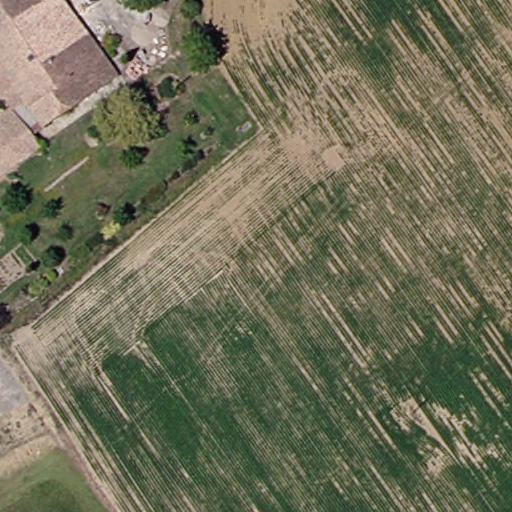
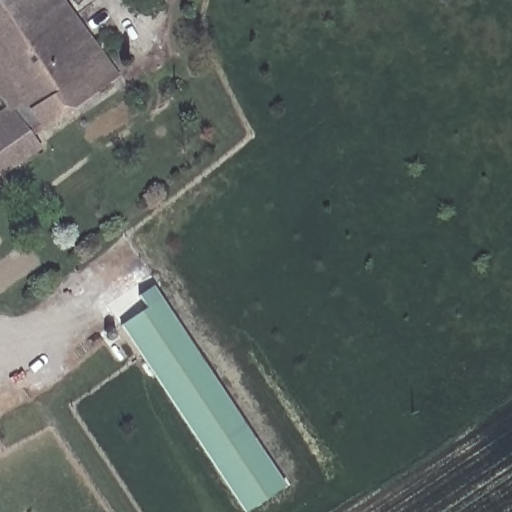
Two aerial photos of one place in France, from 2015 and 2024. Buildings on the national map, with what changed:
unchanged [(6,0),(65,0),(120,75),(46,127),(0,64),(0,4),(6,0)]
unchanged [(0,196),(0,115),(12,108),(50,165),(12,190),(1,197),(0,196)]
new [(139,296),(153,286),(287,485),(246,512),(244,512),(120,326),(147,307),(139,296)]
demolished [(476,467),(431,411),(450,396),(494,452),(476,467)]

